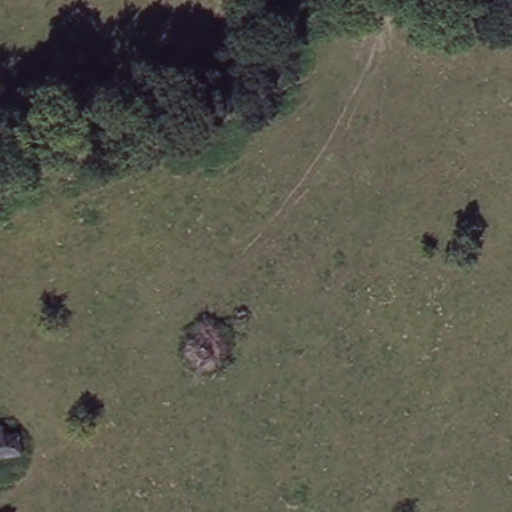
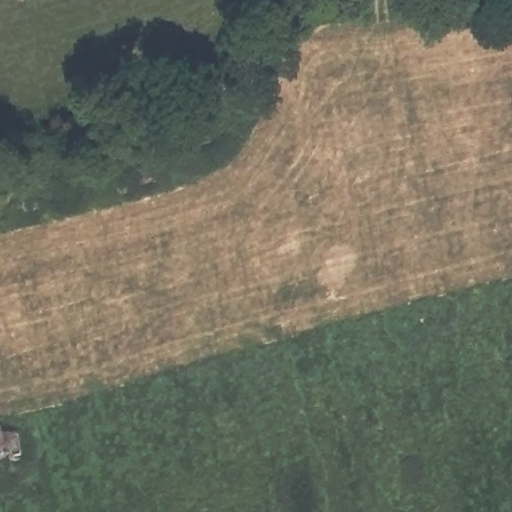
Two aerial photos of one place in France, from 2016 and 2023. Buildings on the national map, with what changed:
unchanged [(2,441),(17,438),(19,459),(0,463),(0,429),(2,441)]

